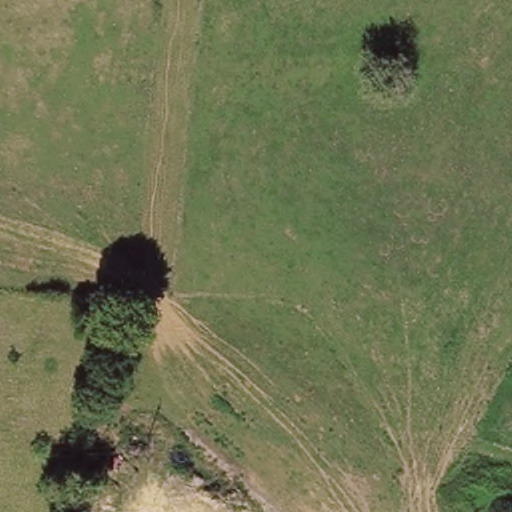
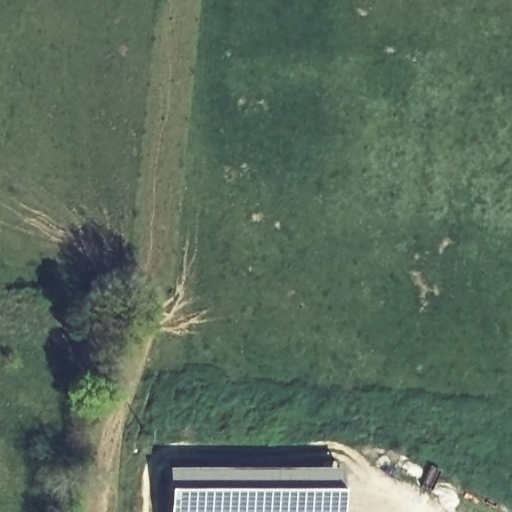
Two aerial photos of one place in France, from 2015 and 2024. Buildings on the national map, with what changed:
new [(340,474),(340,512),(166,512),(166,474),(340,474)]

